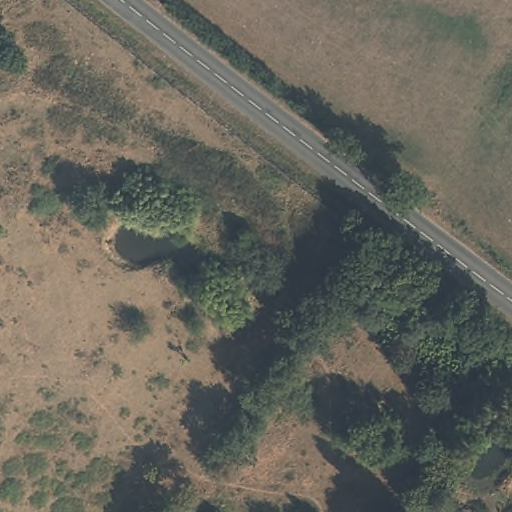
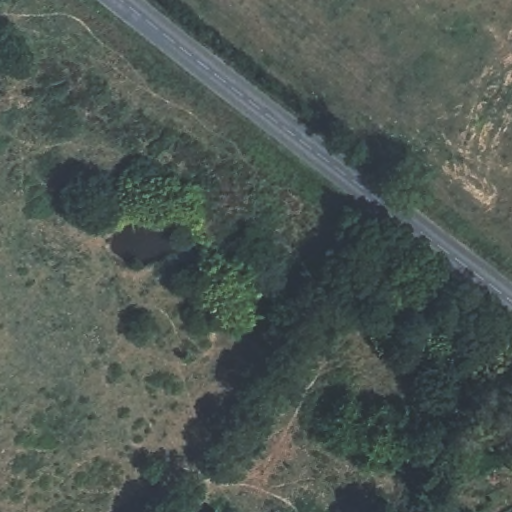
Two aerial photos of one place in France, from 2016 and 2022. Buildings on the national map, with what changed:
unchanged [(414,512),(421,501),(435,511),(435,512),(414,512)]
unchanged [(218,512),(213,512),(214,510),(218,512)]

